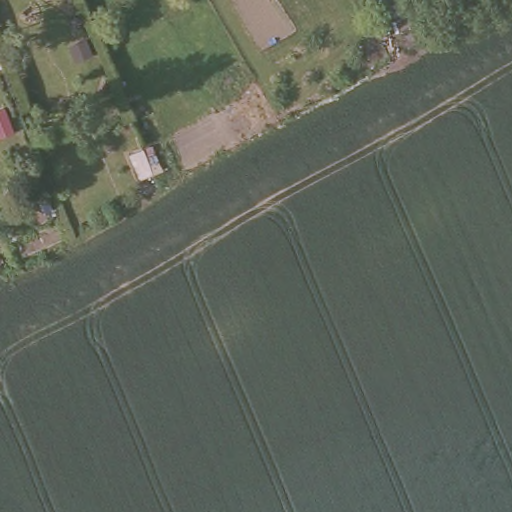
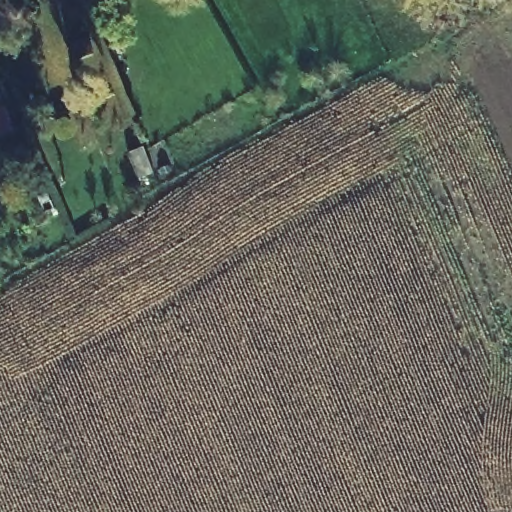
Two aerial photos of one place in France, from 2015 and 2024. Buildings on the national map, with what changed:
unchanged [(154,167),(140,172),(130,148),(144,143),(154,167)]

